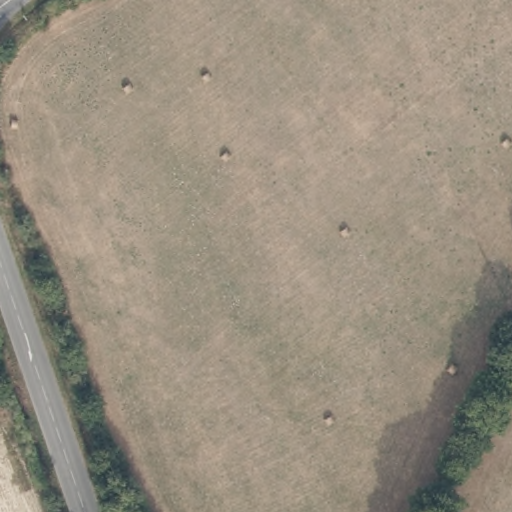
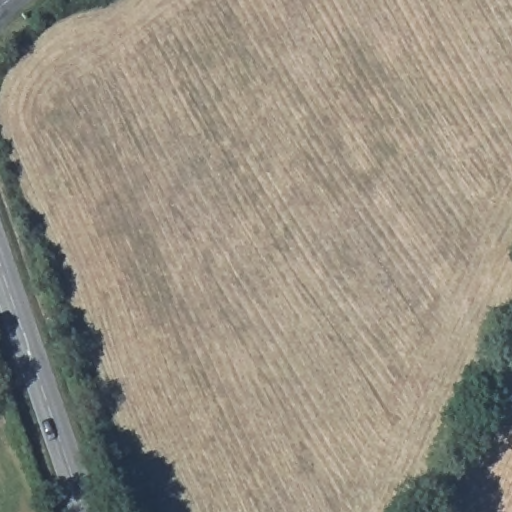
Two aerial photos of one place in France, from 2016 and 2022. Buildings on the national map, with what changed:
[]

